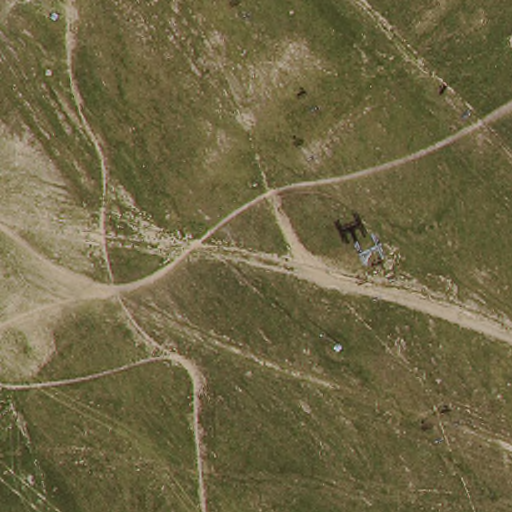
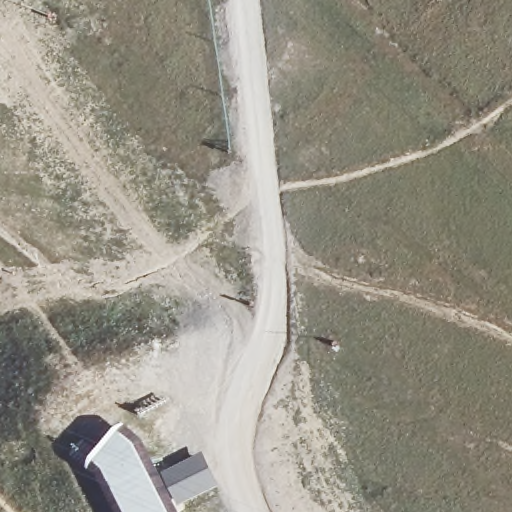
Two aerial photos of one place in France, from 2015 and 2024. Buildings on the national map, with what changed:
new [(101,481),(87,470),(124,425),(143,441),(179,512),(116,512),(101,481)]
new [(204,453),(221,487),(180,507),(164,474),(204,453)]

